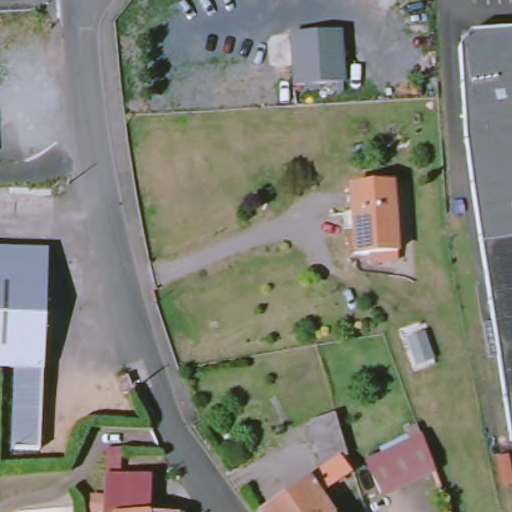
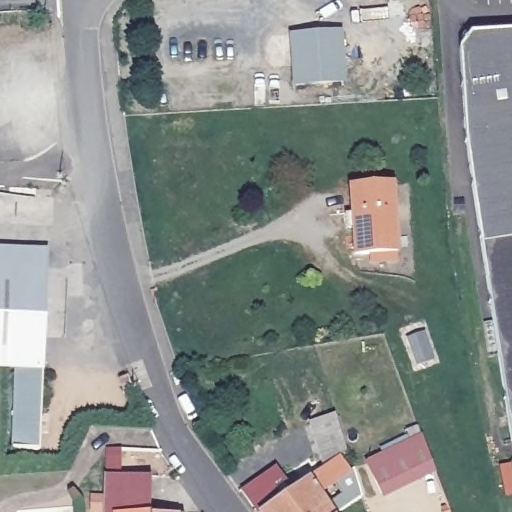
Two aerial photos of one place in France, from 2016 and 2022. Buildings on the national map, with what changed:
unchanged [(465,47),(477,32),(512,27),(512,238),(485,242),(473,137),(465,47)]
unchanged [(291,37),(340,34),(343,81),(295,86),(291,37)]
unchanged [(367,253),(355,254),(353,228),(344,228),(343,213),(353,211),(351,188),(391,185),(395,261),(385,261),(367,263),(367,253)]
unchanged [(512,435),(485,242),(512,238),(512,435)]
unchanged [(12,368),(0,367),(0,247),(46,249),(40,369),(12,368)]
unchanged [(40,369),(35,450),(10,449),(12,368),(40,369)]
unchanged [(310,423),(335,417),(347,457),(339,462),(346,472),(315,494),(329,512),(265,512),(325,470),(310,423)]
unchanged [(421,436),(434,471),(383,496),(367,464),(421,436)]
unchanged [(121,475),(151,476),(151,512),(103,512),(107,447),(123,448),(121,475)]

